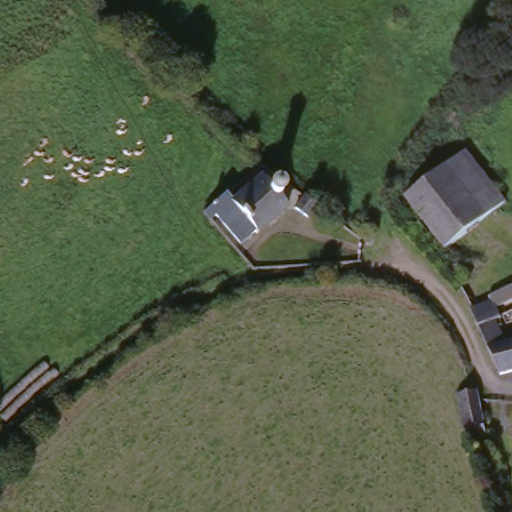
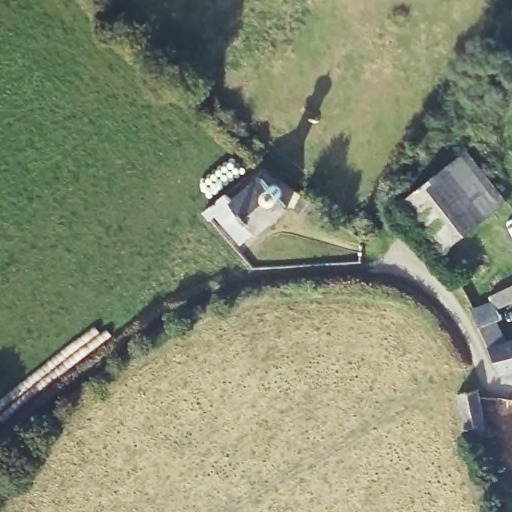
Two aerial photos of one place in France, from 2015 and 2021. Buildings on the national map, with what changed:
unchanged [(444,253),(406,194),(469,151),(508,210),(444,253)]
unchanged [(244,189),(266,168),(278,181),(286,174),(296,184),(290,190),(296,196),(251,236),(226,210),(219,215),(211,206),(210,205),(236,181),(244,189)]
unchanged [(324,198),(308,216),(297,205),(313,188),(324,198)]
unchanged [(512,286),(512,312),(499,316),(511,347),(512,347),(512,377),(501,380),(471,310),(512,286)]
unchanged [(486,438),(474,439),(472,430),(466,431),(459,393),(464,392),(479,388),(483,404),(486,438)]

